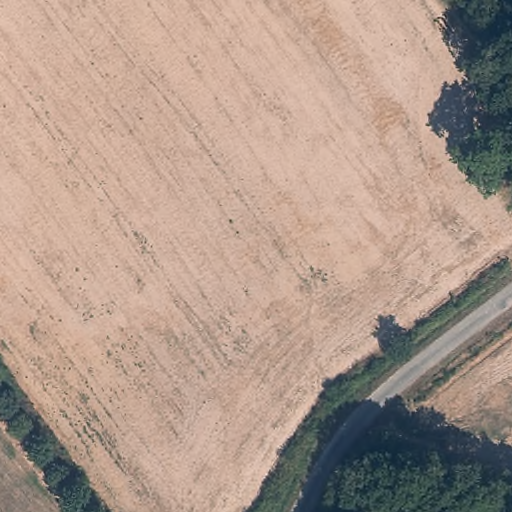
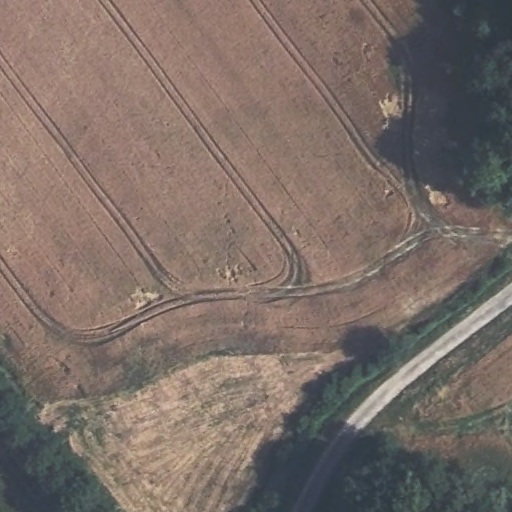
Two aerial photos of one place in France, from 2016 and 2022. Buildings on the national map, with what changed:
[]

